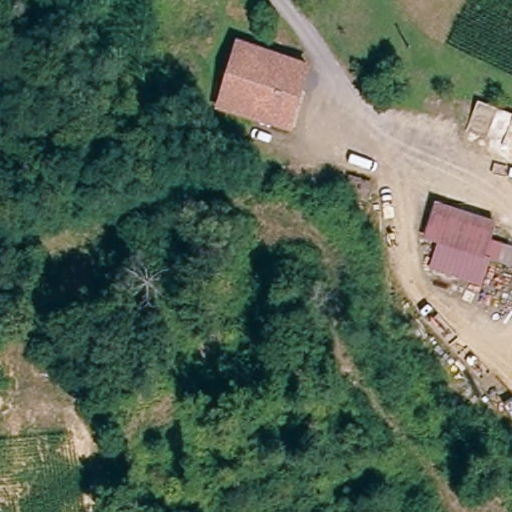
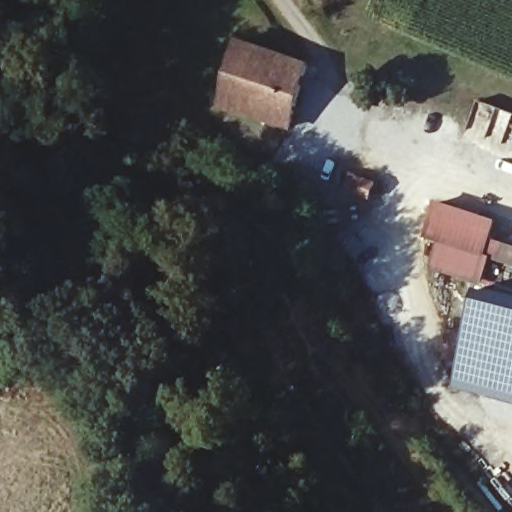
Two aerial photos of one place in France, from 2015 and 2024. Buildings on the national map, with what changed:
unchanged [(283,159),(254,150),(263,122),(219,107),(240,43),(312,67),(283,159)]
unchanged [(370,200),(346,192),(351,177),(375,184),(370,200)]
unchanged [(489,252),(427,231),(437,204),(498,222),(489,252)]
unchanged [(489,252),(493,239),(512,245),(512,268),(490,261),(481,286),(431,267),(441,236),(489,252)]
new [(479,287),(512,297),(512,403),(452,388),(479,287)]

